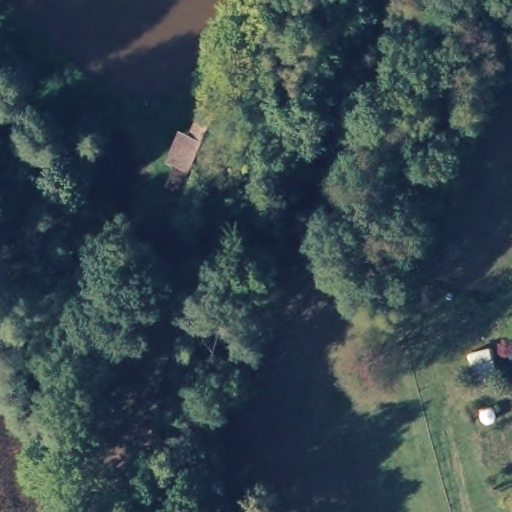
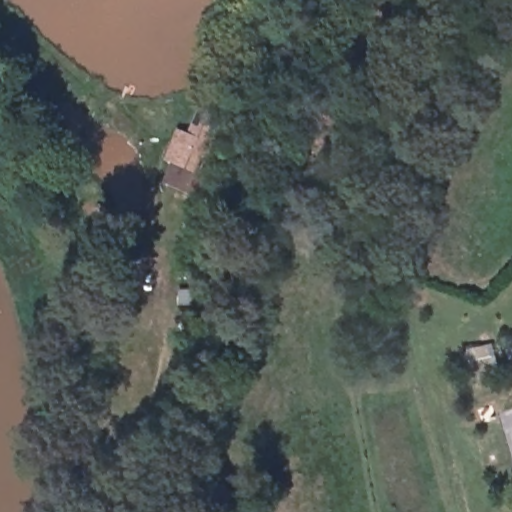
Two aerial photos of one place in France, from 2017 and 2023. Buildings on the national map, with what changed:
unchanged [(190,166),(187,169),(178,166),(203,93),(219,96),(208,123),(216,126),(198,171),(190,166)]

